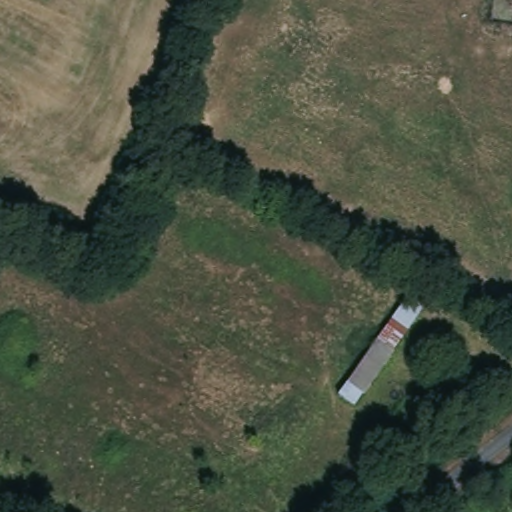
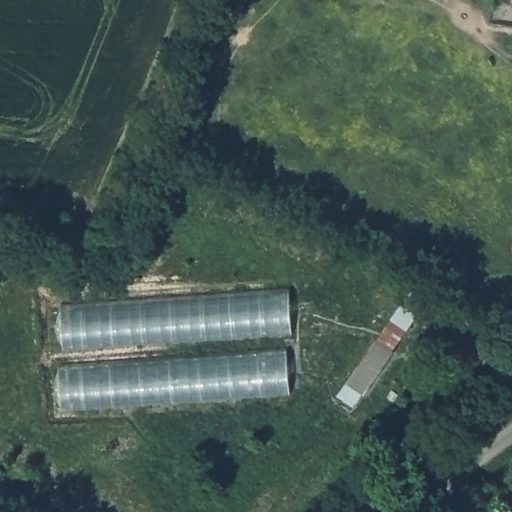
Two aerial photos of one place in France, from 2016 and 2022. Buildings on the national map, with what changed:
unchanged [(344,393),(416,290),(430,299),(422,311),(377,376),(358,402),(344,393)]
new [(61,307),(290,292),(292,333),(65,348),(61,307)]
unchanged [(502,301),(512,308),(512,331),(491,315),(502,301)]
new [(62,409),(60,367),(287,350),(291,394),(62,409)]

